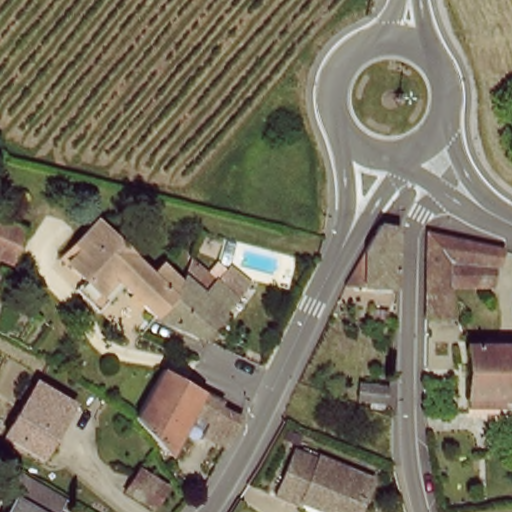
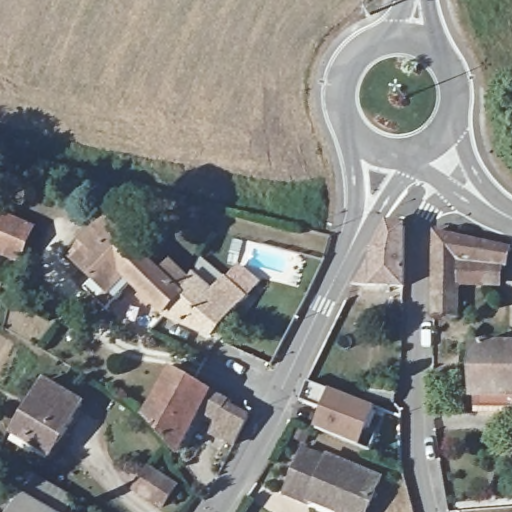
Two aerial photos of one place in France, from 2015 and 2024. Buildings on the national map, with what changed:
unchanged [(32,230),(19,262),(0,254),(0,216),(32,230)]
unchanged [(87,289),(96,281),(80,263),(73,257),(88,241),(108,222),(164,276),(172,267),(184,277),(175,287),(184,295),(166,319),(135,286),(109,311),(87,289)]
unchanged [(393,226),(411,230),(410,288),(359,286),(393,226)]
unchanged [(438,228),(510,246),(507,264),(503,264),(503,281),(461,280),(459,315),(436,315),(438,228)]
unchanged [(247,298),(214,340),(166,319),(184,295),(200,259),(247,298)]
unchanged [(472,352),(512,352),(512,404),(470,405),(472,352)]
unchanged [(236,441),(213,428),(219,417),(201,407),(181,447),(173,440),(168,436),(146,413),(173,365),(201,382),(232,402),(248,412),(250,414),(236,441)]
new [(309,382),(374,407),(366,431),(377,435),(371,452),(318,430),(326,411),(301,402),(309,382)]
unchanged [(369,382),(395,386),(393,402),(366,399),(369,382)]
unchanged [(48,385),(85,407),(55,457),(18,436),(48,385)]
unchanged [(285,496),(288,487),(291,480),(300,458),(304,448),(327,458),(329,455),(384,477),(379,490),(369,512),(333,512),(313,503),(311,507),(285,496)]
unchanged [(137,490),(151,468),(177,486),(165,507),(137,490)]
unchanged [(20,511),(13,507),(26,484),(72,512),(19,512),(20,511)]

